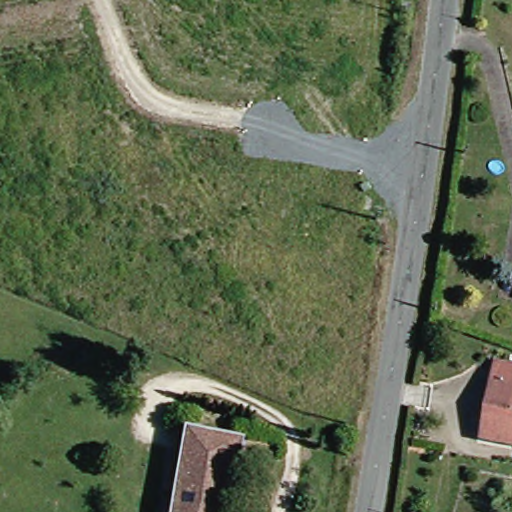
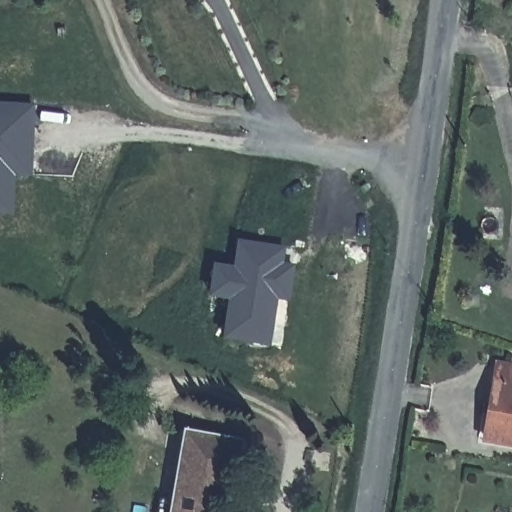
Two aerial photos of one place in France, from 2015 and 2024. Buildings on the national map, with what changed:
new [(33,123),(30,175),(18,174),(13,174),(11,213),(0,212),(0,104),(34,106),(33,123)]
new [(211,295),(215,265),(238,268),(242,242),(287,249),(284,264),(296,266),(291,299),(279,297),(272,344),(227,337),(233,298),(211,295)]
unchanged [(512,365),(512,442),(491,439),(504,364),(512,365)]
unchanged [(189,502),(200,431),(256,441),(252,465),(247,464),(238,512),(187,512),(189,502)]
unchanged [(174,499),(189,502),(187,512),(172,512),(174,499)]

